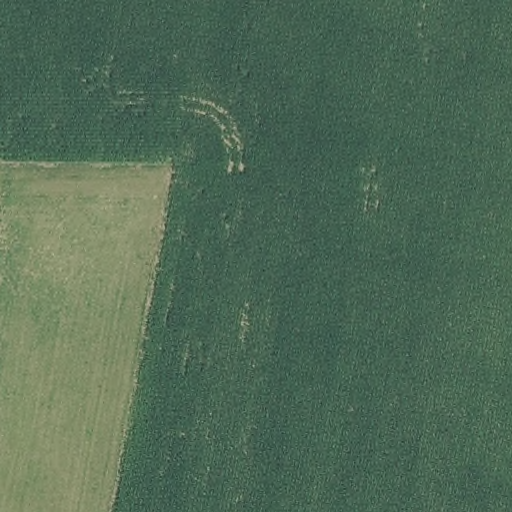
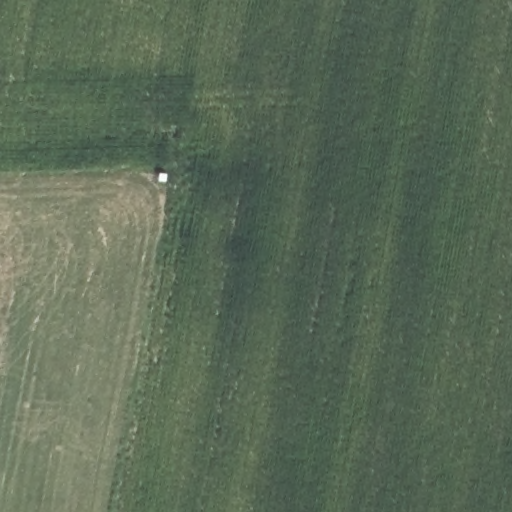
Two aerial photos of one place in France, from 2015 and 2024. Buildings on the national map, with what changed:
[]

